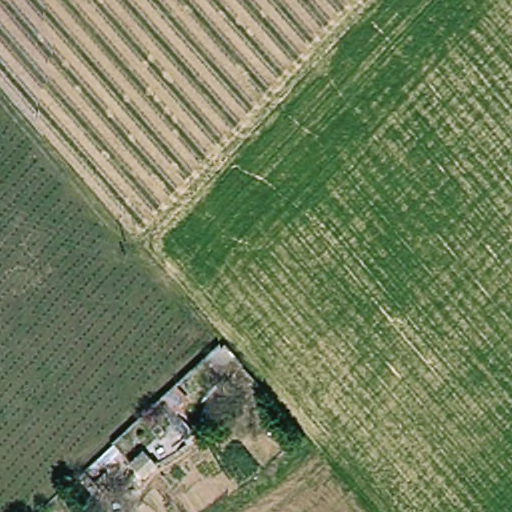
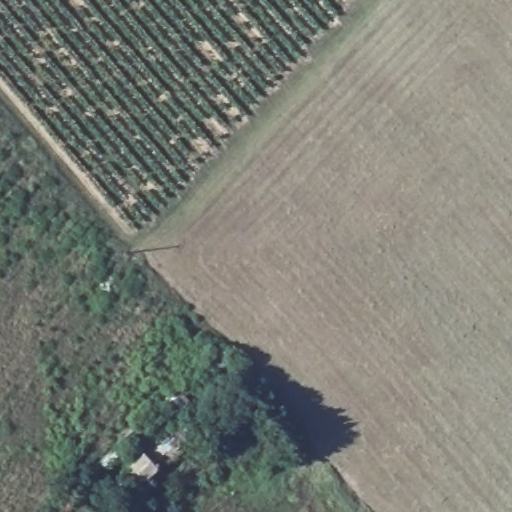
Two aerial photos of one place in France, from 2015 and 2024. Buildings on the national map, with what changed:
unchanged [(183,389),(196,402),(182,415),(170,401),(183,389)]
unchanged [(122,446),(131,455),(113,472),(111,470),(106,475),(100,467),(122,446)]
unchanged [(153,452),(166,466),(153,480),(140,465),(153,452)]

